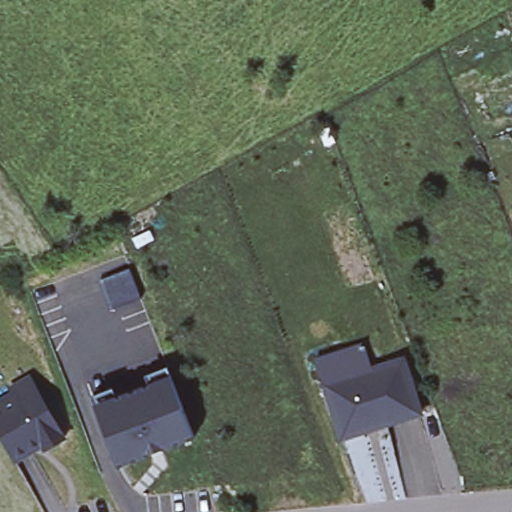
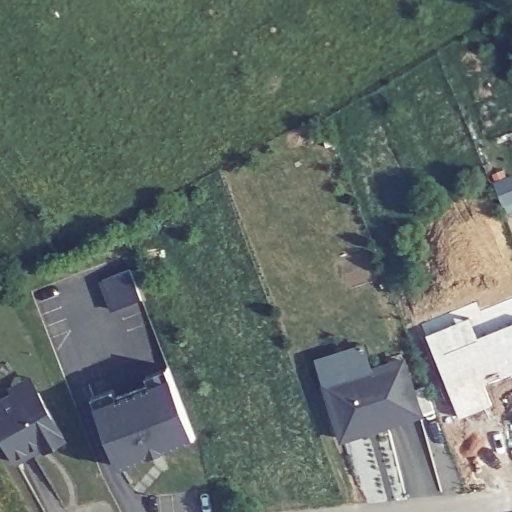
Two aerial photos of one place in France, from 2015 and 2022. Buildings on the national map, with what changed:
new [(511,176),(512,179),(512,197),(498,204),(489,185),(511,176)]
new [(130,270),(141,302),(110,313),(99,282),(130,270)]
new [(469,321),(477,341),(512,325),(512,375),(500,380),(499,374),(482,381),(492,409),(458,421),(426,338),(469,321)]
unchanged [(368,369),(401,359),(418,412),(339,436),(316,359),(361,345),(368,369)]
unchanged [(175,374),(198,435),(123,464),(99,403),(175,374)]
unchanged [(41,443),(14,458),(0,433),(0,402),(15,393),(11,386),(29,375),(38,389),(64,435),(44,447),(41,443)]

